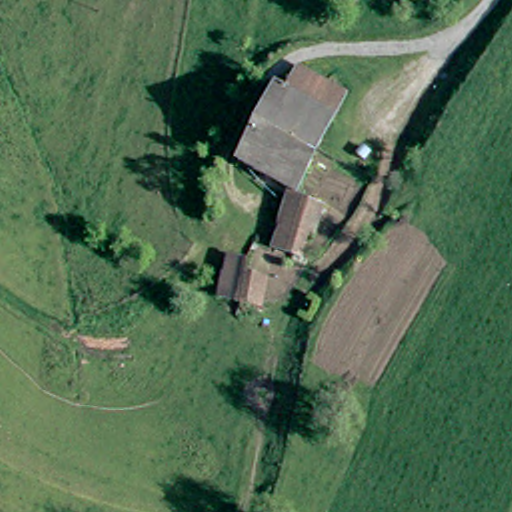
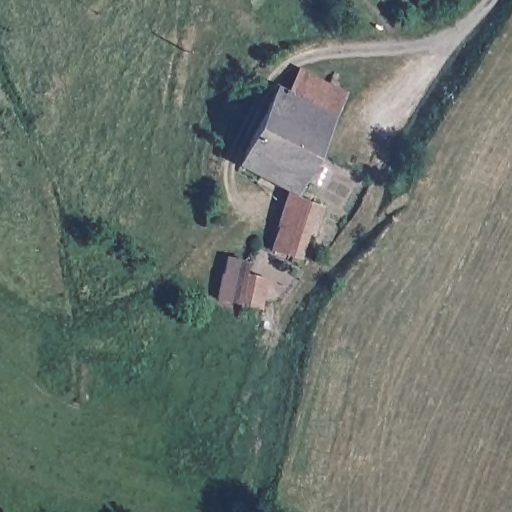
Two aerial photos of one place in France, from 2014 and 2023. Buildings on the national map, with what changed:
unchanged [(236,166),(271,90),(284,91),(295,70),(342,93),(316,149),(296,192),(324,209),(315,235),(292,227),(285,250),(271,247),(288,189),(236,166)]
unchanged [(214,288),(226,249),(243,254),(241,262),(249,268),(251,264),(265,270),(256,300),(254,300),(249,311),(236,307),(239,296),(214,288)]

